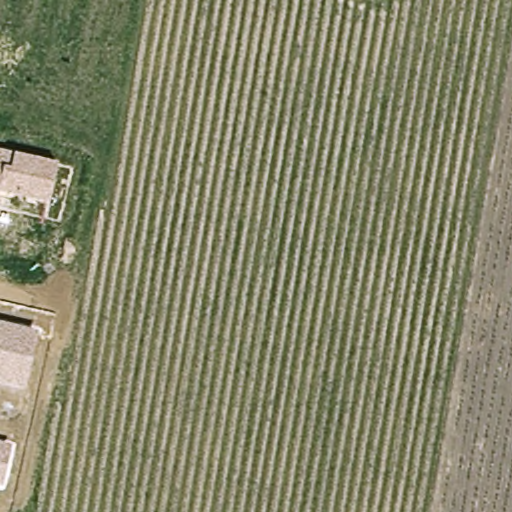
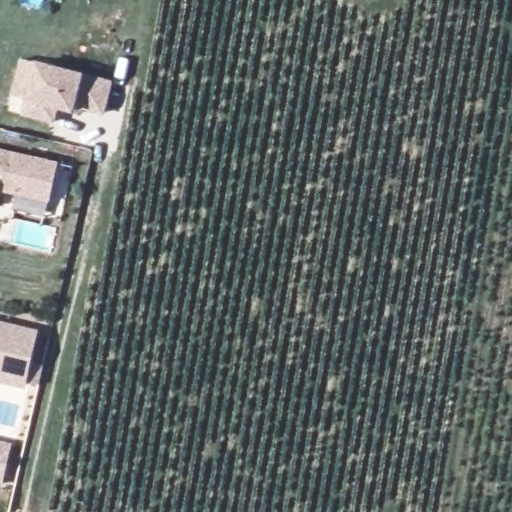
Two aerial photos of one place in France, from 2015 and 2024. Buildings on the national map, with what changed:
new [(83,75),(111,84),(103,116),(75,111),(73,115),(58,111),(53,125),(21,117),(25,100),(12,96),(21,60),(33,62),(83,75)]
unchanged [(48,201),(0,189),(0,150),(15,154),(57,162),(48,201)]
unchanged [(25,391),(0,384),(0,323),(40,335),(25,391)]
unchanged [(0,482),(0,443),(11,445),(0,482)]

